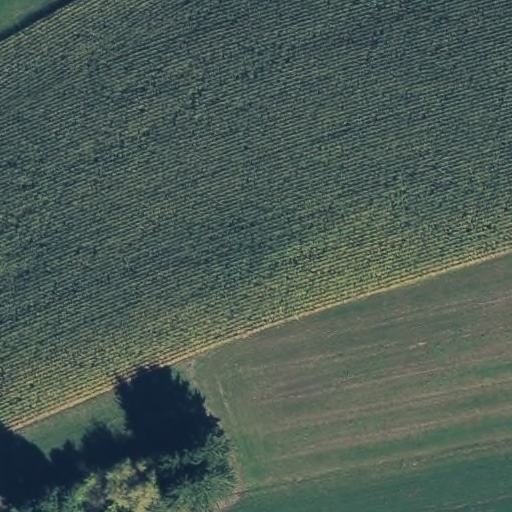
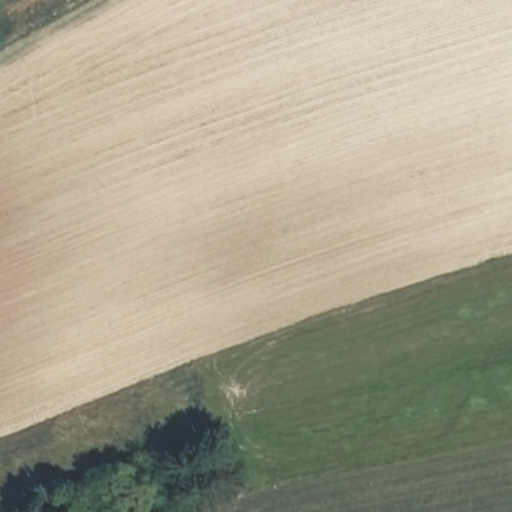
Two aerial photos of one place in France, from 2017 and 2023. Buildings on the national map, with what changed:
[]

